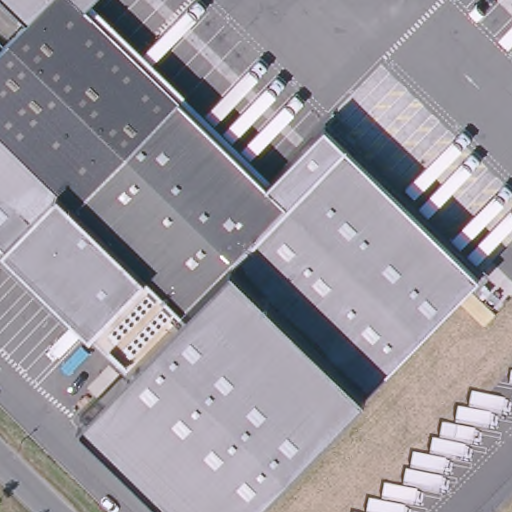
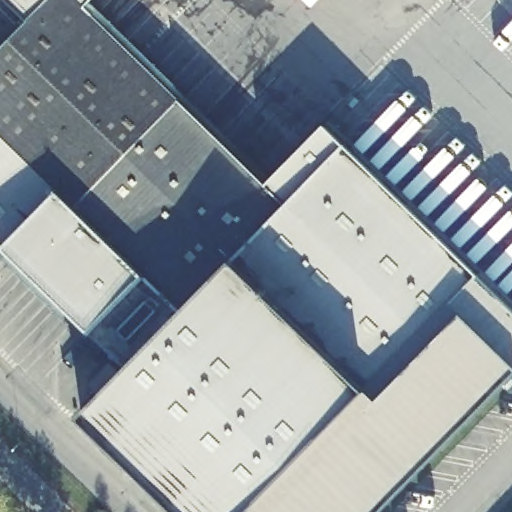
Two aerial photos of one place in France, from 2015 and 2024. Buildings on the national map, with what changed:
unchanged [(43,0),(93,0),(291,197),(185,304),(22,141),(0,163),(0,43),(43,0)]
unchanged [(43,0),(26,17),(10,0),(43,0)]
unchanged [(22,141),(185,304),(291,197),(271,177),(322,125),(472,270),(363,385),(244,512),(186,512),(82,416),(128,366),(87,328),(4,248),(0,244),(0,163),(22,141)]
new [(363,385),(472,270),(512,308),(512,376),(379,512),(258,512),(250,505),(363,385)]

